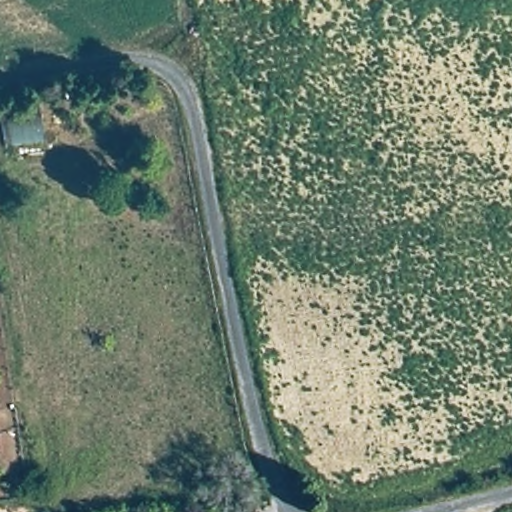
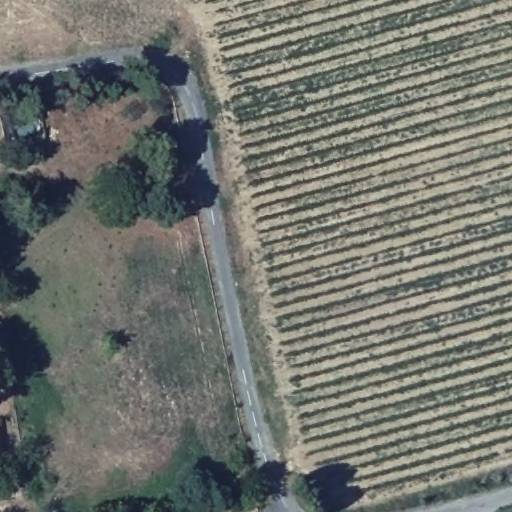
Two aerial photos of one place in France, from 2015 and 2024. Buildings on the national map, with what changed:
unchanged [(44,142),(7,146),(3,116),(42,111),(44,142)]

